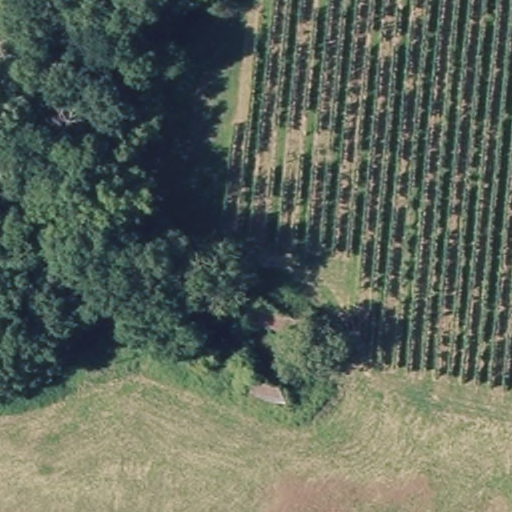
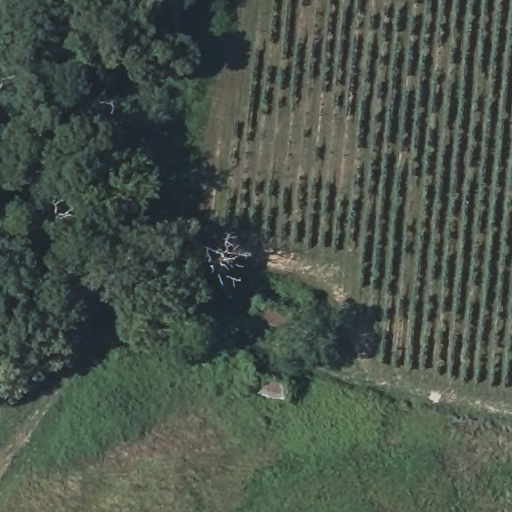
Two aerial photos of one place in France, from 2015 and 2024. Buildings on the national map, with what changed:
unchanged [(310,312),(306,342),(252,328),(257,298),(310,312)]
unchanged [(299,378),(295,407),(250,400),(242,398),(244,374),(245,368),(299,378)]

